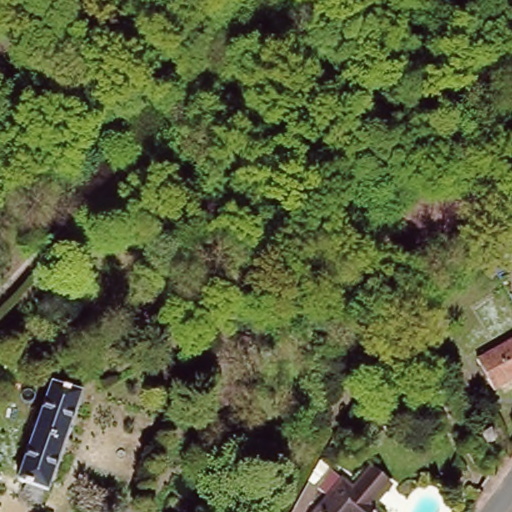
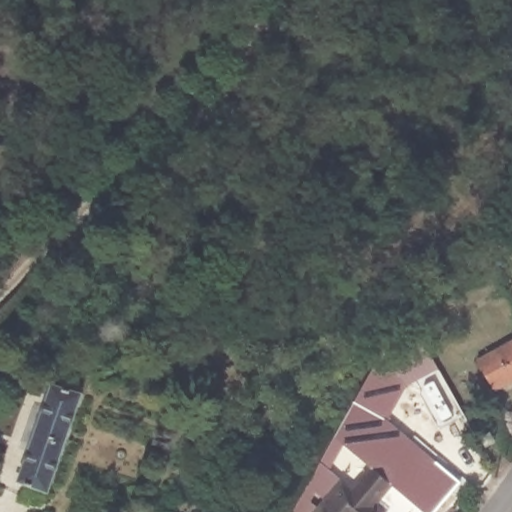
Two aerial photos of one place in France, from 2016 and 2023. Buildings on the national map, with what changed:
unchanged [(476,361),(512,340),(512,381),(493,391),(476,361)]
new [(460,481),(433,512),(426,512),(394,483),(369,462),(334,436),(375,360),(409,378),(388,418),(460,481)]
unchanged [(16,476),(51,380),(80,389),(63,436),(50,474),(45,487),(16,476)]
unchanged [(480,437),(488,432),(493,441),(485,446),(480,437)]
unchanged [(352,483),(369,462),(394,483),(376,503),(386,512),(311,512),(342,475),(352,483)]
unchanged [(318,487),(304,512),(290,512),(306,482),(318,487)]

